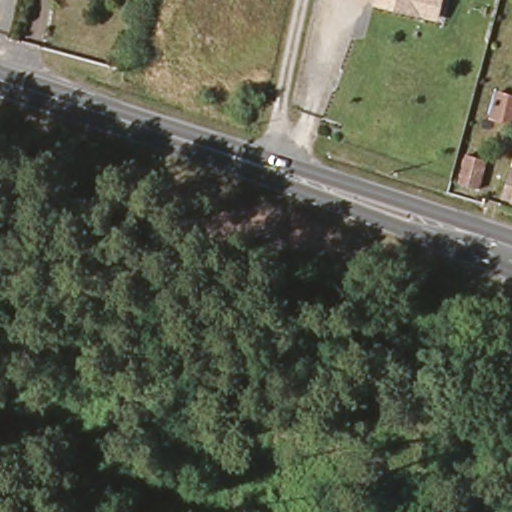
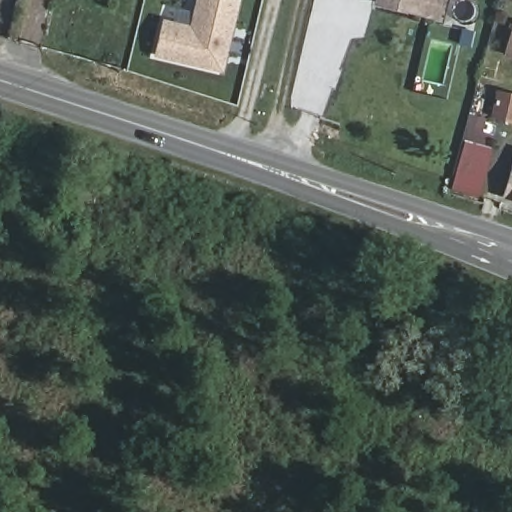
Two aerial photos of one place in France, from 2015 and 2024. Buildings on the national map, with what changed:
new [(222,73),(152,56),(162,18),(189,25),(194,0),(240,0),(222,73)]
unchanged [(438,13),(415,7),(382,0),(442,0),(438,13)]
new [(512,22),(512,58),(503,55),(512,22)]
unchanged [(512,125),(487,119),(493,93),(512,98),(512,125)]
unchanged [(461,188),(471,150),(489,156),(480,194),(461,188)]
unchanged [(512,177),(512,199),(506,197),(512,177)]

